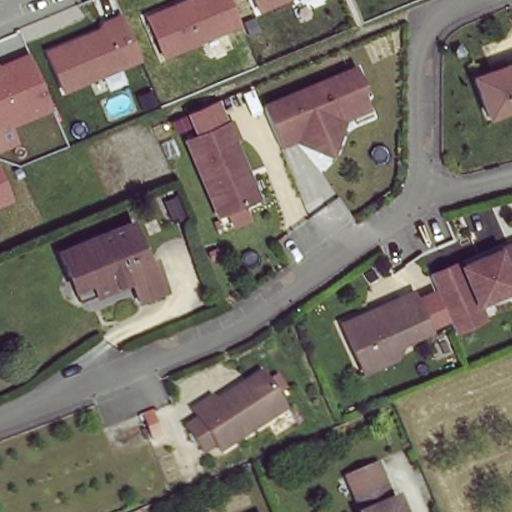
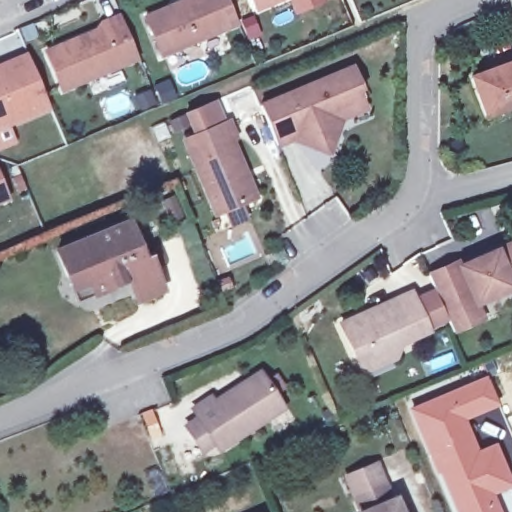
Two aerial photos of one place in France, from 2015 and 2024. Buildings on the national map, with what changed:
unchanged [(162,62),(142,17),(181,0),(228,0),(239,26),(162,62)]
unchanged [(257,13),(252,0),(288,0),(257,13)]
unchanged [(62,93),(43,50),(94,28),(97,22),(118,14),(139,61),(62,93)]
unchanged [(0,133),(0,65),(27,52),(50,111),(0,133)]
unchanged [(473,81),(512,66),(512,99),(484,110),(473,81)]
unchanged [(354,68),(365,88),(361,90),(369,108),(344,119),(331,151),(297,140),(280,147),(263,108),(354,68)]
unchanged [(232,217),(227,204),(215,208),(184,135),(192,132),(183,113),(215,100),(223,119),(228,117),(235,133),(230,135),(255,192),(243,197),(249,211),(232,217)]
unchanged [(2,191),(0,192),(0,188),(2,191)]
unchanged [(65,273),(55,250),(129,219),(147,255),(153,253),(160,268),(165,280),(137,292),(132,279),(130,276),(91,291),(77,297),(65,273)]
unchanged [(444,305),(430,276),(460,262),(462,267),(512,244),(512,288),(479,303),(486,318),(456,332),(444,305)]
unchanged [(357,359),(340,321),(411,289),(428,327),(399,340),(393,355),(362,369),(357,359)]
new [(512,367),(511,366),(512,366),(512,367)]
unchanged [(181,424),(194,416),(188,406),(206,394),(210,399),(255,369),(278,405),(214,446),(210,441),(197,449),(181,424)]
new [(500,406),(467,420),(478,447),(496,441),(512,483),(512,487),(497,493),(504,512),(453,512),(407,408),(487,373),(500,406)]
unchanged [(353,492),(345,470),(373,460),(381,480),(388,498),(390,497),(396,512),(357,512),(360,510),(353,492)]
new [(512,487),(512,512),(504,512),(497,493),(512,487)]

